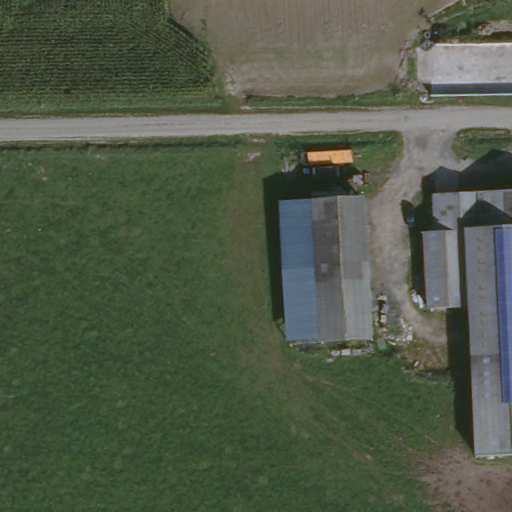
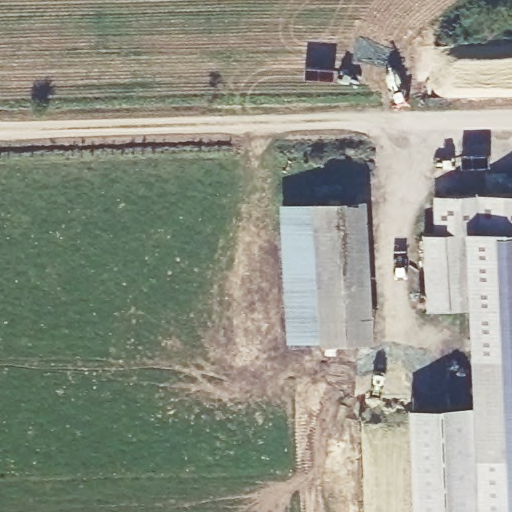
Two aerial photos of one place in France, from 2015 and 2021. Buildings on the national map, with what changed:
unchanged [(512,454),(475,454),(461,297),(431,297),(433,238),(431,196),(512,193),(512,454)]
unchanged [(365,202),(365,294),(371,294),(370,346),(287,346),(288,202),(365,202)]
new [(512,454),(512,512),(412,512),(408,407),(471,404),(475,454),(512,454)]

